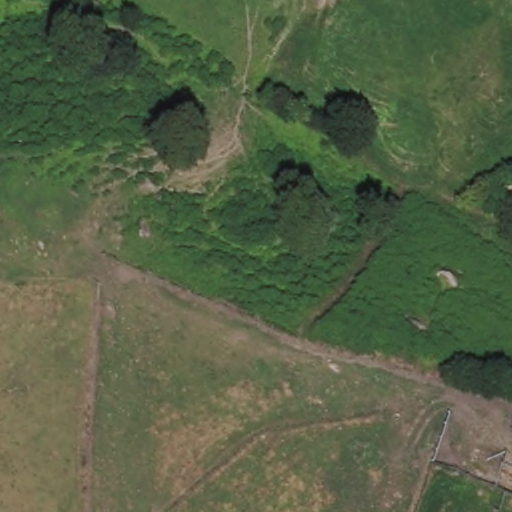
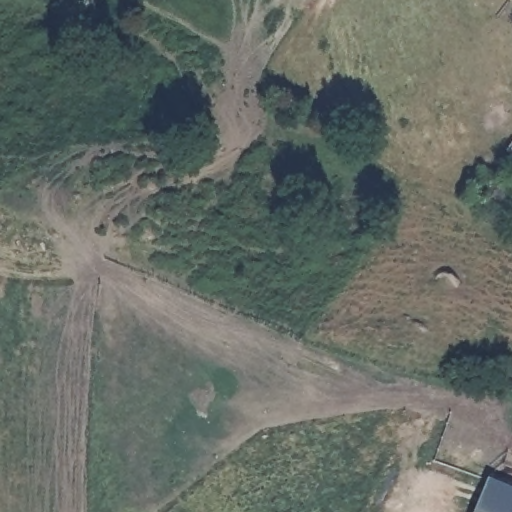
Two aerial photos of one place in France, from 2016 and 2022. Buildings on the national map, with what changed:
new [(489,479),(512,490),(512,512),(476,512),(489,479)]

